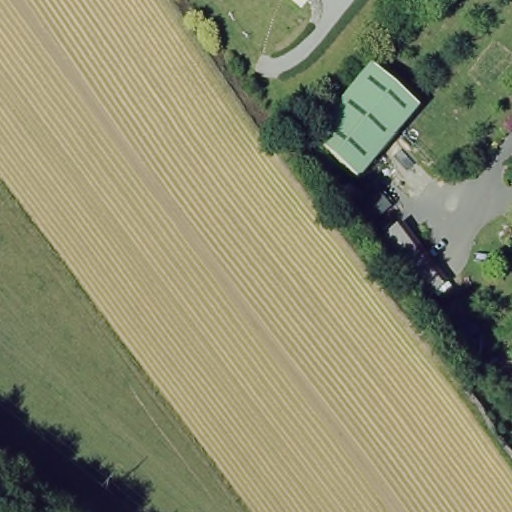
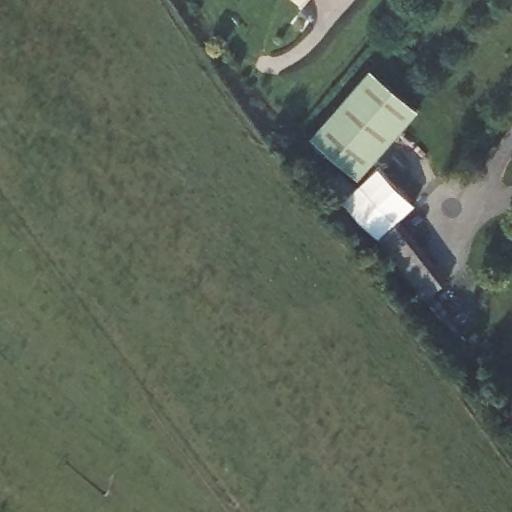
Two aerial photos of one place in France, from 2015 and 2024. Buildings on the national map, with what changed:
unchanged [(357,177),(311,138),(371,69),(416,108),(357,177)]
new [(341,202),(380,167),(415,204),(395,221),(377,235),(341,202)]
unchanged [(441,281),(419,298),(373,238),(395,221),(441,281)]

